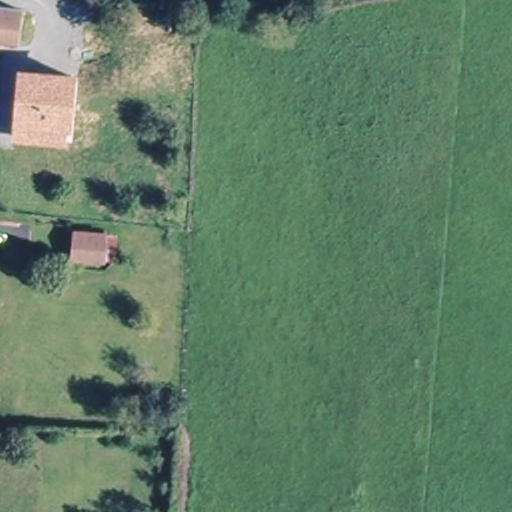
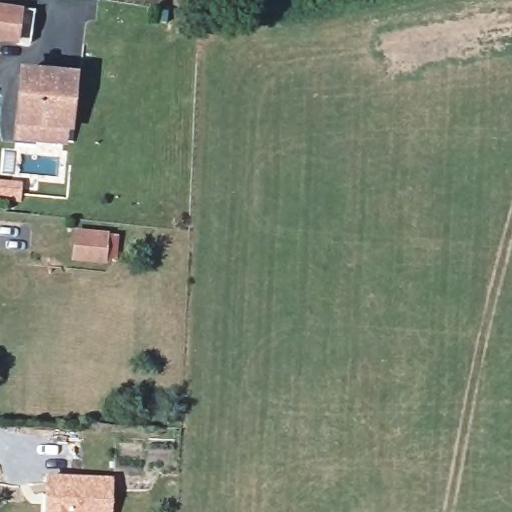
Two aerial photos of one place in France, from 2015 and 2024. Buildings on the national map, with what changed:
unchanged [(2,6),(21,9),(16,41),(0,39),(0,6),(2,6)]
unchanged [(12,141),(13,126),(18,67),(78,73),(71,131),(68,131),(67,145),(12,141)]
unchanged [(116,262),(104,262),(75,259),(77,233),(106,235),(118,237),(116,262)]
new [(111,479),(110,512),(45,512),(46,478),(111,479)]

